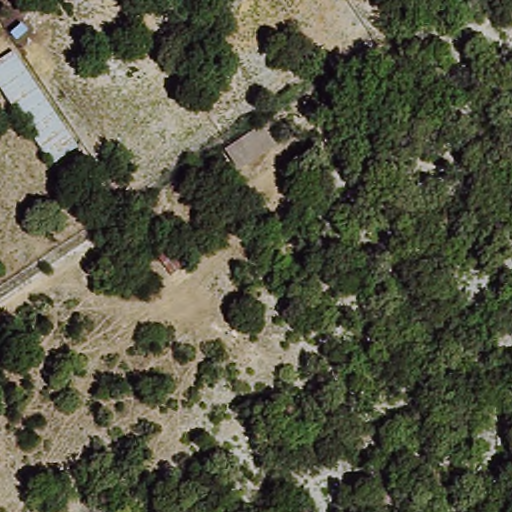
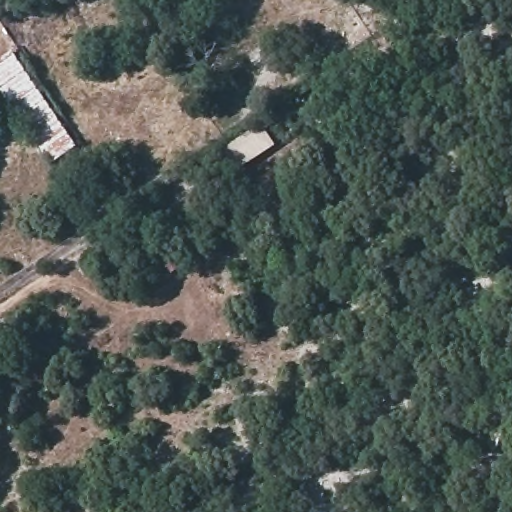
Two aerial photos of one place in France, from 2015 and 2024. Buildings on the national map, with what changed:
unchanged [(48,161),(0,91),(0,58),(9,52),(73,144),(48,161)]
unchanged [(269,124),(284,145),(245,171),(230,148),(269,124)]

